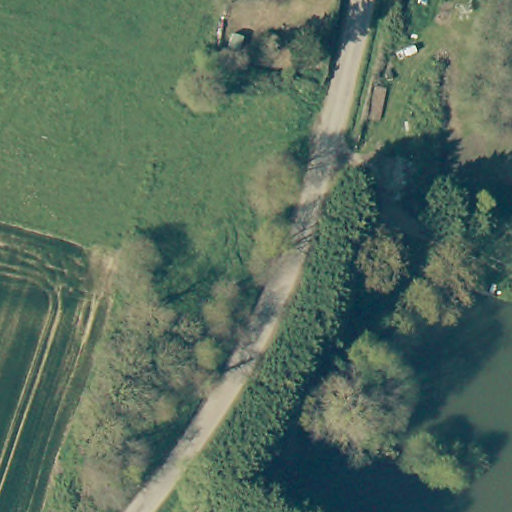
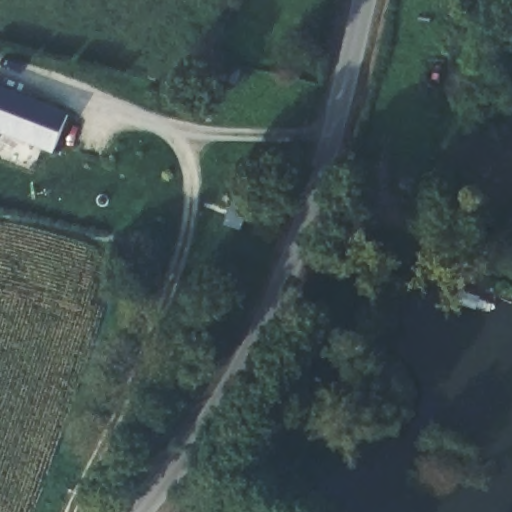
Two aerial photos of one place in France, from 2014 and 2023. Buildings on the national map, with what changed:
new [(69,113),(54,154),(0,133),(0,86),(69,113)]

